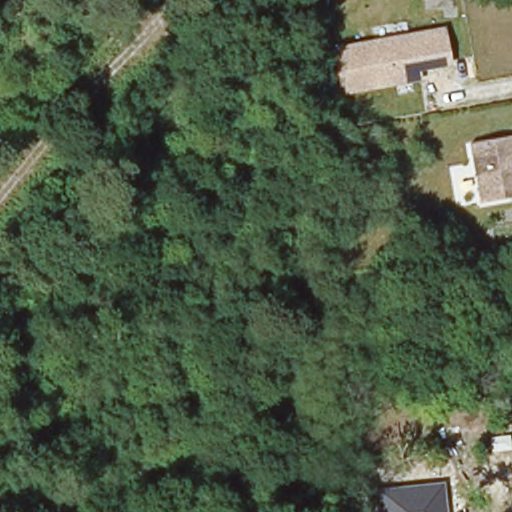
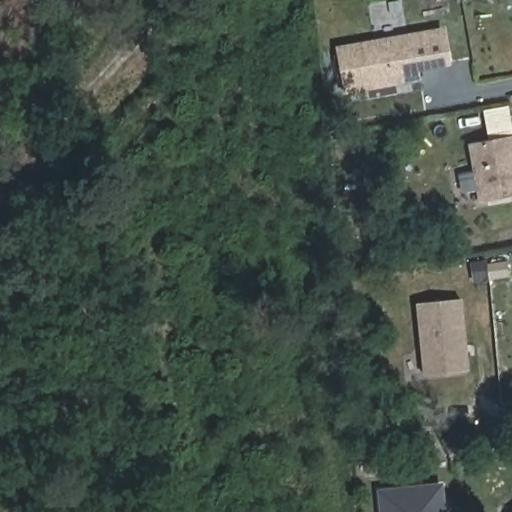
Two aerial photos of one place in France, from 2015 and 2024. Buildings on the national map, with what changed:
unchanged [(421,69),(420,78),(340,92),(332,43),(441,24),(448,64),(421,69)]
unchanged [(464,142),(512,133),(512,192),(477,200),(464,142)]
new [(425,375),(417,303),(462,299),(470,371),(425,375)]
unchanged [(377,512),(375,489),(443,482),(447,512),(377,512)]

